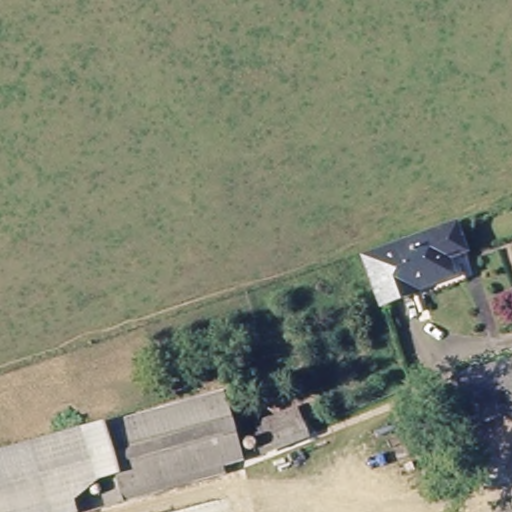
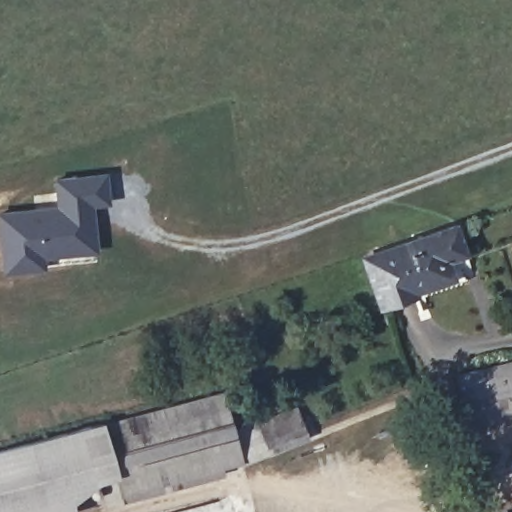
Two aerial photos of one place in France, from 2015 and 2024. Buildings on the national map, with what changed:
new [(56,180),(104,174),(107,201),(90,203),(96,261),(5,271),(0,228),(0,214),(59,207),(56,180)]
unchanged [(462,286),(458,278),(420,291),(422,296),(386,308),(368,260),(456,229),(466,255),(462,257),(473,283),(462,286)]
unchanged [(461,425),(452,383),(512,368),(512,414),(461,425)]
unchanged [(131,505),(111,509),(92,436),(229,400),(246,468),(248,476),(131,505)]
unchanged [(293,415),(303,431),(267,446),(259,430),(293,415)]
unchanged [(85,435),(97,488),(71,505),(72,512),(39,512),(52,509),(37,446),(85,435)]
unchanged [(52,509),(39,512),(0,512),(0,455),(37,446),(52,509)]

